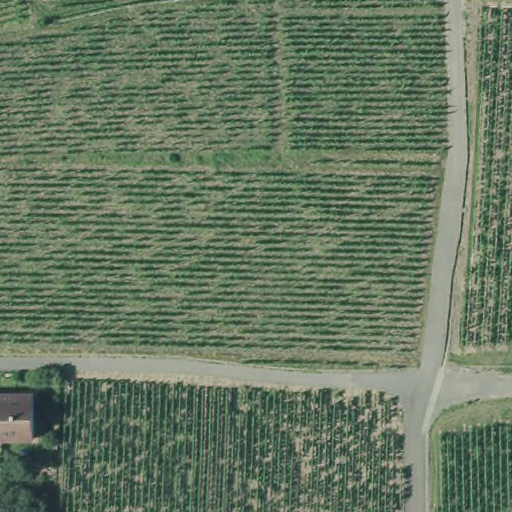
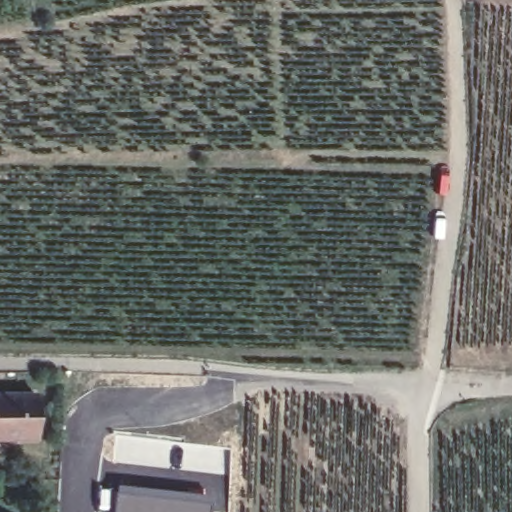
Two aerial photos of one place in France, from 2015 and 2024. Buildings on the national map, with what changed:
unchanged [(8,431),(0,431),(0,390),(41,390),(40,435),(9,434),(8,431)]
new [(212,512),(112,512),(114,484),(213,498),(212,512)]

